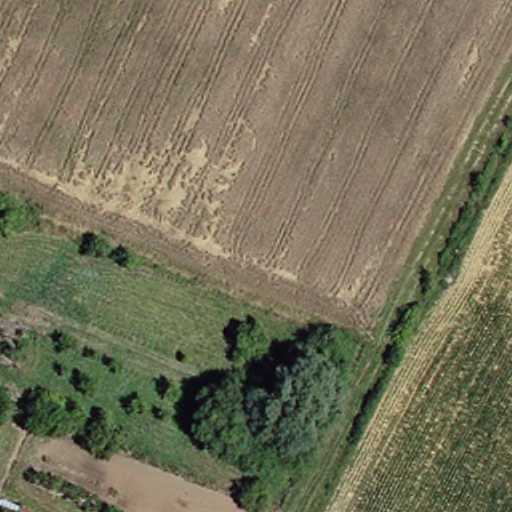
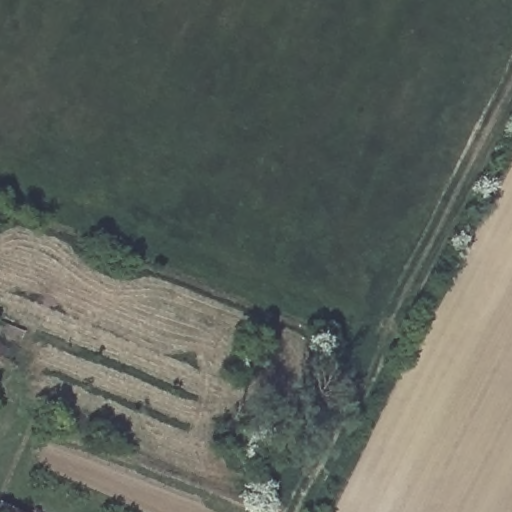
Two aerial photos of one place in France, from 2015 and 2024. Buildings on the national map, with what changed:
unchanged [(20,512),(0,512),(0,503),(20,512)]

